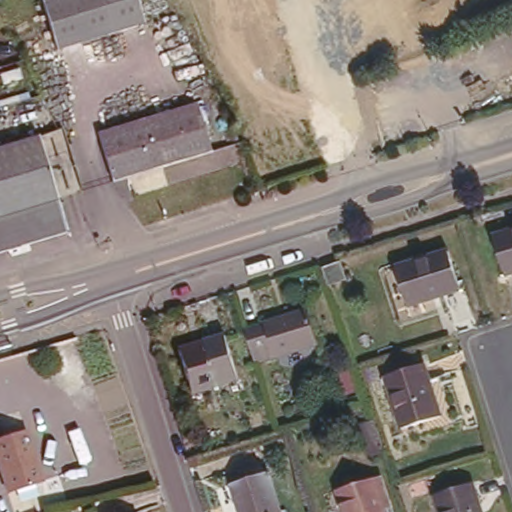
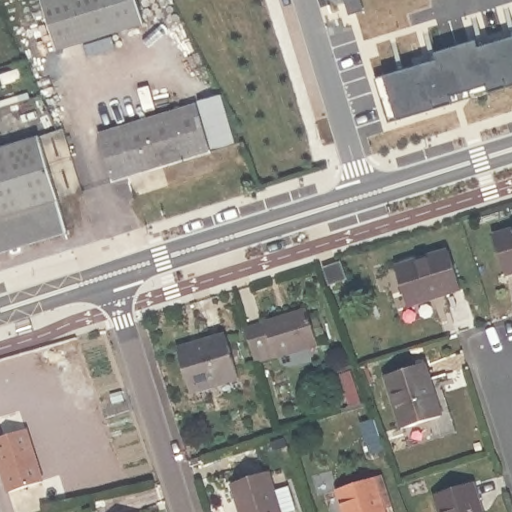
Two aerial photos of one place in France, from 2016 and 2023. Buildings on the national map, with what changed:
unchanged [(44,0),(139,0),(146,24),(59,50),(44,0)]
new [(512,33),(512,102),(385,143),(367,80),(512,33)]
unchanged [(105,131),(202,101),(215,147),(119,177),(105,131)]
unchanged [(70,228),(0,250),(0,144),(39,132),(70,228)]
unchanged [(499,237),(512,233),(512,274),(511,275),(499,237)]
unchanged [(396,267),(448,251),(461,290),(408,307),(396,267)]
unchanged [(323,268),(339,263),(345,280),(329,285),(323,268)]
unchanged [(260,370),(257,361),(255,362),(245,328),(306,310),(316,343),(273,356),(275,365),(260,370)]
unchanged [(174,344),(220,330),(232,374),(187,387),(174,344)]
unchanged [(24,342),(25,349),(10,353),(7,346),(24,342)]
unchanged [(385,379),(423,366),(442,422),(405,434),(385,379)]
unchanged [(10,497),(1,471),(0,471),(0,447),(28,438),(44,487),(10,497)]
unchanged [(463,474),(476,512),(433,512),(425,487),(463,474)]
unchanged [(266,475),(279,512),(242,512),(234,486),(266,475)]
unchanged [(373,480),(384,512),(344,512),(337,492),(373,480)]

